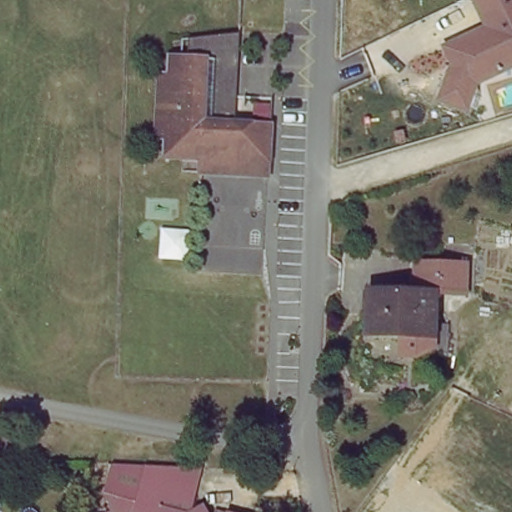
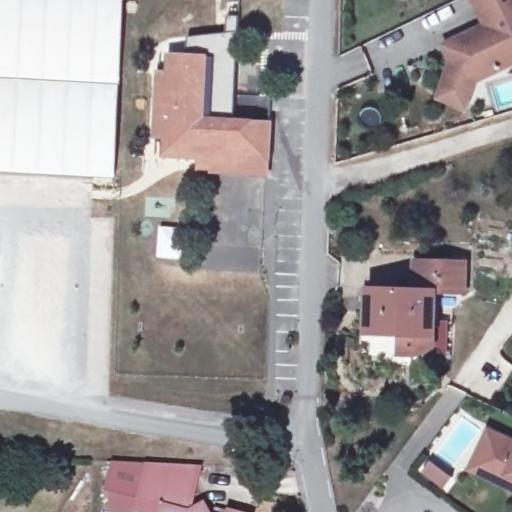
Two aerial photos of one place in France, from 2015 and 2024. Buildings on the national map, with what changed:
new [(122,189),(0,185),(0,0),(123,0),(122,189)]
unchanged [(469,112),(438,101),(450,65),(439,49),(483,27),(470,0),(512,0),(512,69),(480,83),(469,112)]
unchanged [(268,178),(248,177),(197,175),(198,163),(163,161),(164,144),(155,144),(158,80),(165,79),(166,62),(183,62),(185,41),(238,36),(235,98),(235,101),(234,126),(271,127),(268,178)]
unchanged [(188,260),(156,259),(157,228),(190,232),(188,260)]
unchanged [(406,258),(465,259),(465,290),(437,290),(405,289),(406,258)]
unchanged [(436,337),(369,337),(371,289),(405,289),(437,290),(436,337)]
new [(487,426),(512,438),(512,492),(466,470),(487,426)]
unchanged [(100,492),(111,459),(117,460),(146,462),(187,465),(202,466),(188,511),(202,502),(210,512),(162,512),(167,505),(100,492)]
unchanged [(100,492),(167,505),(162,512),(104,512),(95,510),(100,492)]

